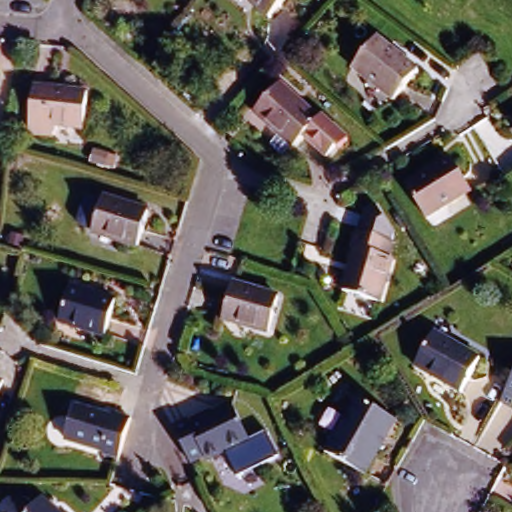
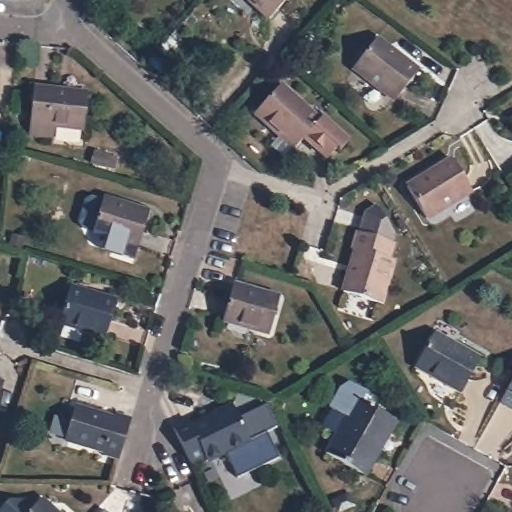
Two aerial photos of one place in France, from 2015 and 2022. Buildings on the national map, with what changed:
unchanged [(253,7),(256,4),(251,0),(287,0),(269,20),(253,7)]
unchanged [(376,40),(418,73),(394,104),(351,70),(376,40)]
unchanged [(328,162),(303,141),(293,151),(253,116),(279,87),(319,121),(344,143),(328,162)]
unchanged [(83,130),(54,128),(52,139),(27,136),(32,89),(87,95),(83,130)]
unchanged [(472,193),(426,221),(406,188),(451,161),(472,193)]
unchanged [(146,214),(137,248),(119,243),(119,240),(91,231),(92,229),(81,226),(77,220),(80,203),(88,197),(100,202),(101,199),(146,214)]
unchanged [(386,256),(391,257),(378,300),(343,289),(356,247),(351,245),(356,229),(359,230),(365,209),(376,203),(394,233),(388,239),(391,240),(386,256)]
unchanged [(269,334),(249,328),(249,325),(221,317),(230,287),(277,300),(269,334)]
unchanged [(58,325),(69,290),(88,296),(115,304),(113,308),(103,339),(58,325)]
unchanged [(460,396),(414,369),(434,334),(479,361),(460,396)]
unchanged [(3,384),(0,394),(0,383),(3,384)]
unchanged [(324,455),(355,400),(395,423),(364,478),(324,455)]
unchanged [(173,427),(187,420),(190,425),(231,405),(247,439),(219,454),(207,460),(204,455),(189,463),(173,427)]
unchanged [(512,405),(512,408),(511,407),(512,405)]
unchanged [(128,423),(117,462),(102,457),(103,454),(64,441),(73,408),(113,420),(113,418),(128,423)]
unchanged [(266,429),(281,460),(238,480),(225,451),(247,439),(266,429)]
unchanged [(7,502),(26,501),(33,508),(39,501),(52,512),(0,512),(0,509),(7,502)]
unchanged [(102,509),(105,512),(99,512),(102,509)]

